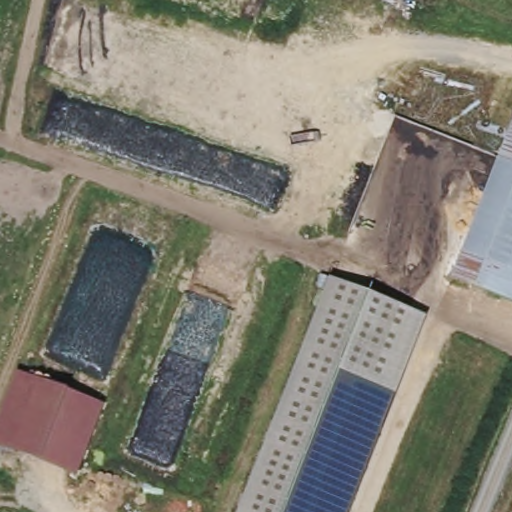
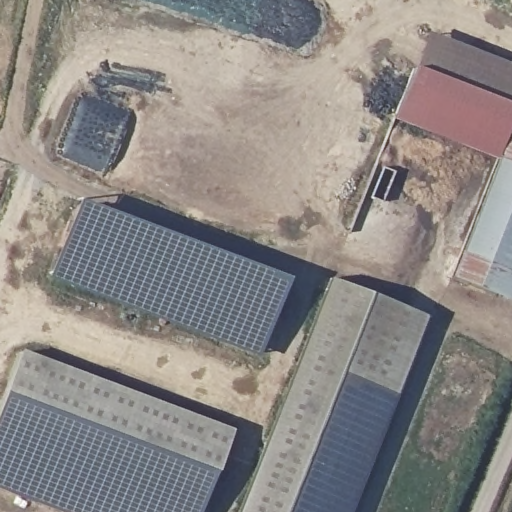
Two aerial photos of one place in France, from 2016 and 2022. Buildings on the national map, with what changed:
new [(512,125),(500,157),(498,161),(394,120),(428,32),(512,64),(512,125)]
unchanged [(512,162),(500,157),(512,125),(512,162)]
unchanged [(512,279),(463,258),(500,157),(512,162),(512,279)]
new [(79,199),(289,280),(259,356),(49,277),(79,199)]
unchanged [(512,303),(455,281),(463,258),(512,279),(512,303)]
unchanged [(330,279),(427,317),(350,512),(236,512),(330,279)]
new [(233,430),(202,512),(64,512),(0,487),(0,410),(22,350),(233,430)]

